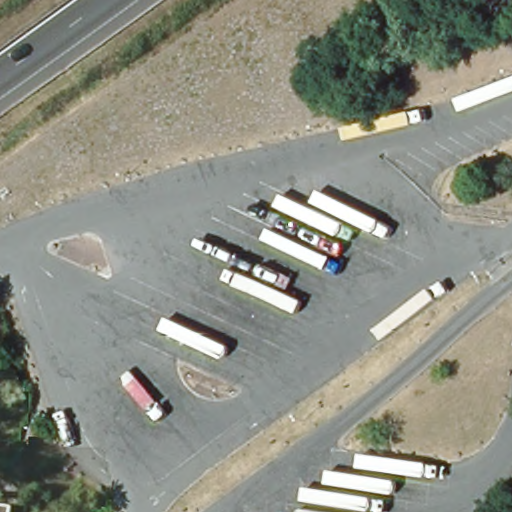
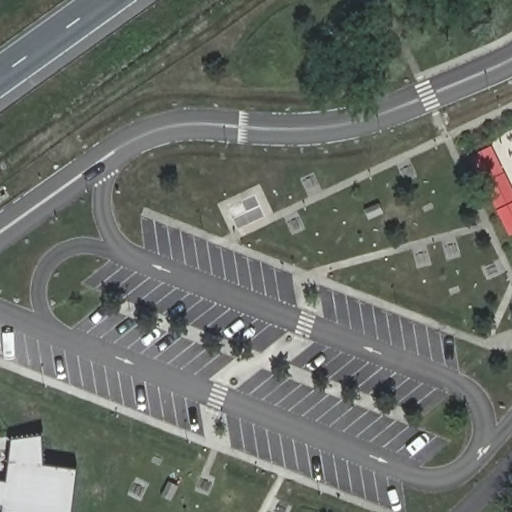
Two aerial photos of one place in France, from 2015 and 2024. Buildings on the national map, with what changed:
new [(6,480),(12,438),(42,434),(44,465),(77,468),(72,512),(0,512),(0,480),(6,480)]

